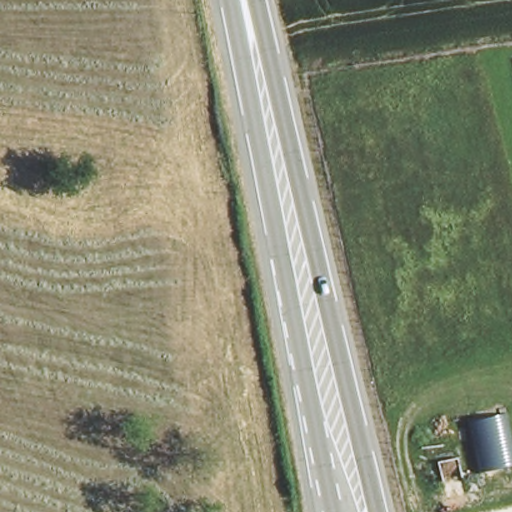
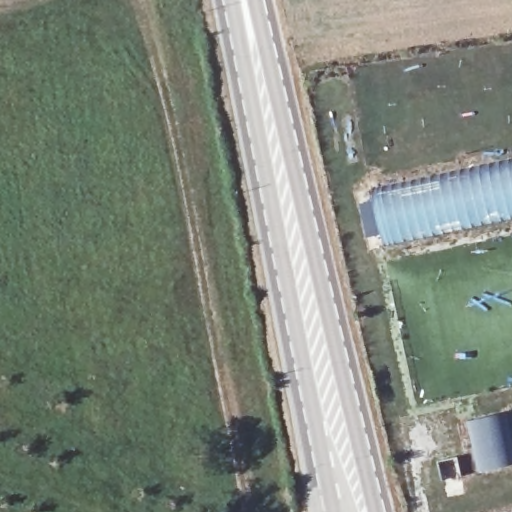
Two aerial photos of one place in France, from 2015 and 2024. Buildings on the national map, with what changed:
new [(374,204),(373,192),(512,161),(512,220),(387,247),(383,236),(367,239),(360,206),(374,204)]
new [(505,412),(512,451),(512,467),(477,474),(467,422),(505,412)]

